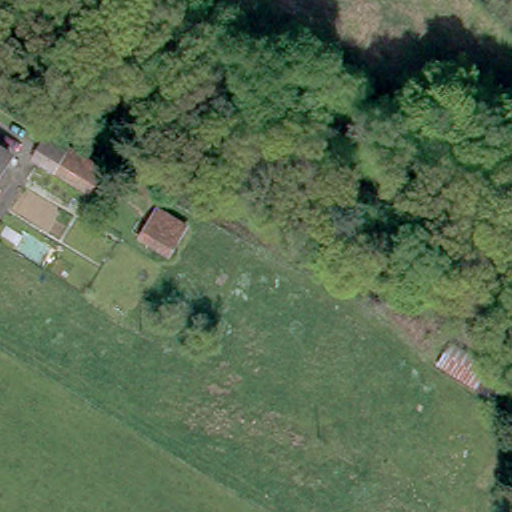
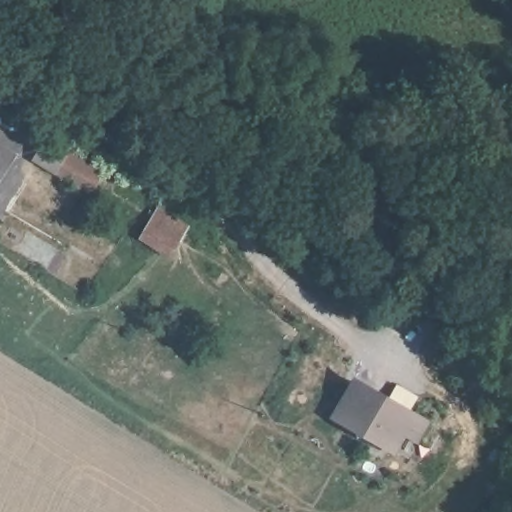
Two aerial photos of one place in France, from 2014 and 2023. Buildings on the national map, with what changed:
unchanged [(90,198),(35,165),(46,145),(56,151),(60,145),(106,173),(90,198)]
unchanged [(16,156),(0,181),(0,146),(16,156)]
unchanged [(191,225),(175,260),(138,241),(157,210),(191,225)]
unchanged [(498,373),(482,397),(436,366),(451,342),(498,373)]
new [(395,456),(330,419),(355,378),(430,421),(418,444),(405,439),(395,456)]

